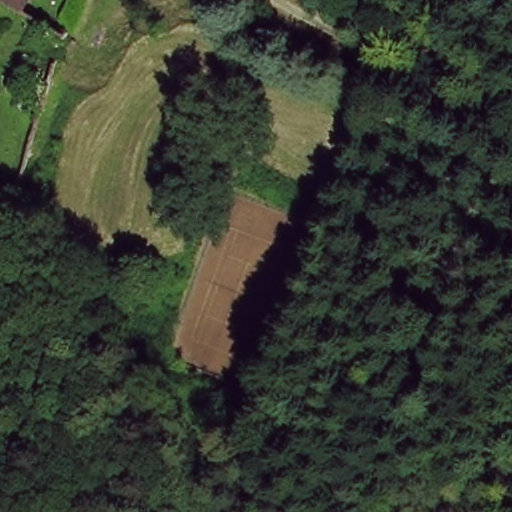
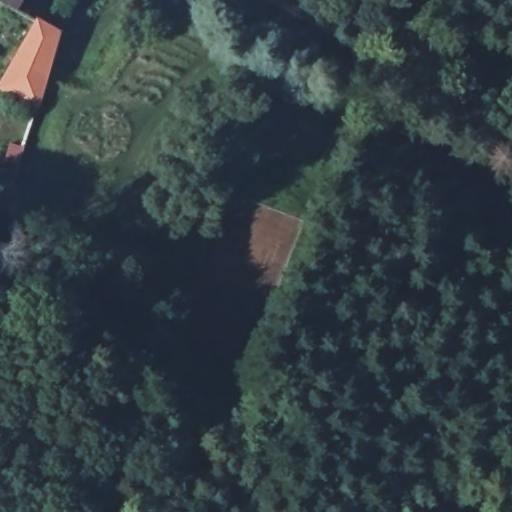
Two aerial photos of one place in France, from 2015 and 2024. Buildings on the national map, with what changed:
unchanged [(0,2),(0,0),(25,0),(17,12),(0,2)]
new [(37,16),(65,31),(40,105),(0,90),(0,82),(37,16)]

